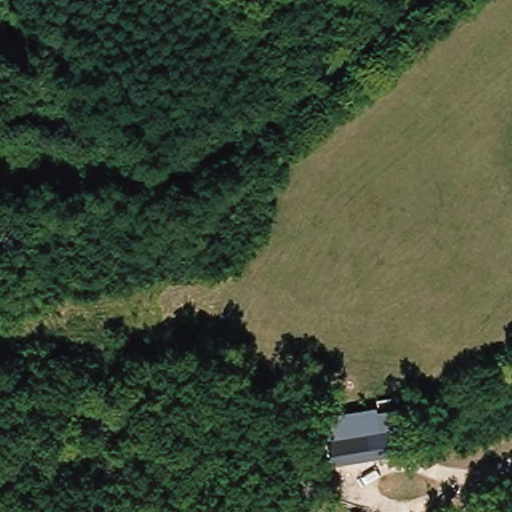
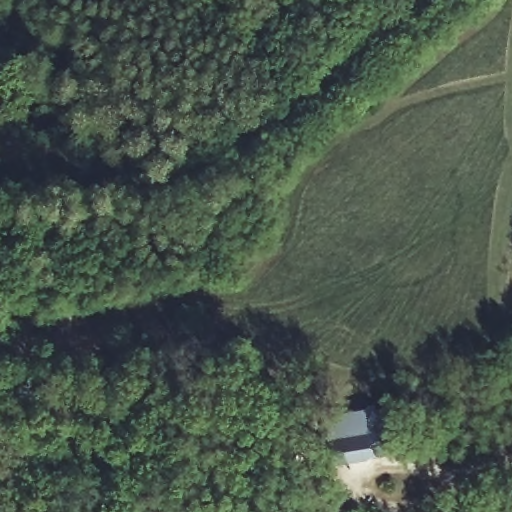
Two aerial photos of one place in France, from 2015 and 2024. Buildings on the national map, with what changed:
unchanged [(394,405),(400,452),(330,463),(323,415),(394,405)]

